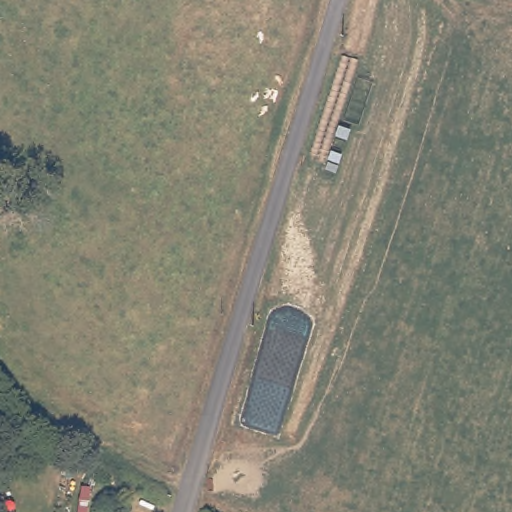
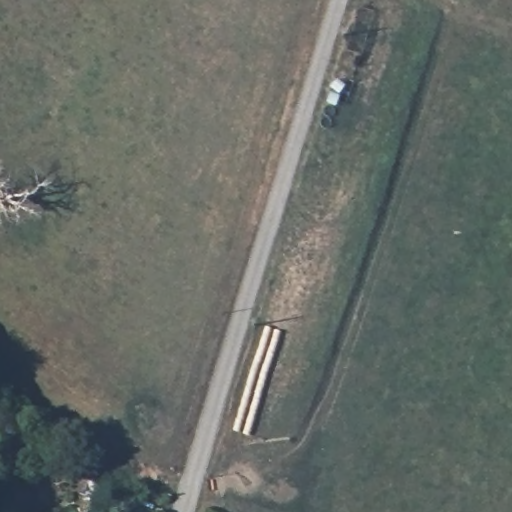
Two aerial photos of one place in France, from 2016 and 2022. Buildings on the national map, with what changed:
[]

